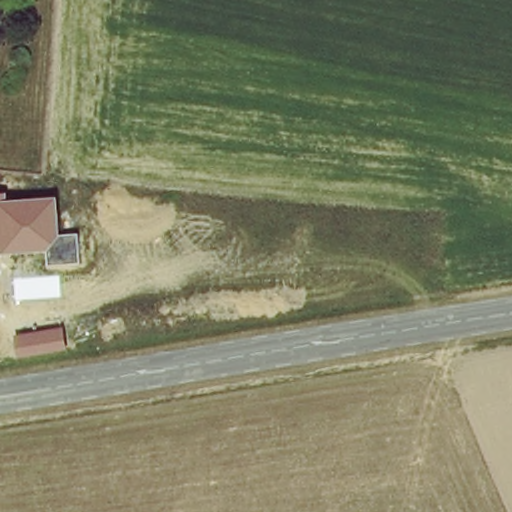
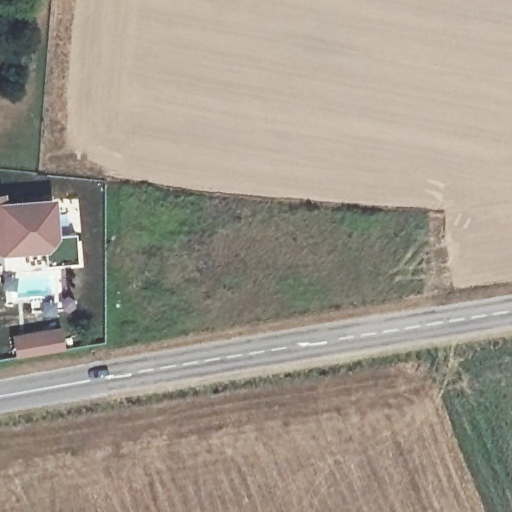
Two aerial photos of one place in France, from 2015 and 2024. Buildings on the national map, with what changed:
unchanged [(59,235),(76,234),(79,265),(45,267),(45,252),(0,255),(0,194),(5,194),(6,200),(56,197),(59,235)]
unchanged [(65,351),(16,359),(11,336),(61,327),(65,351)]

